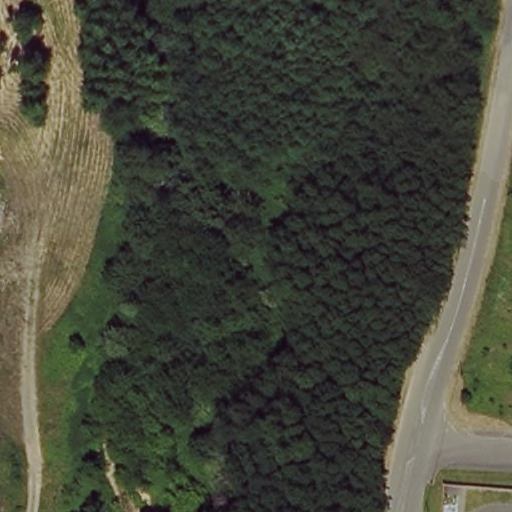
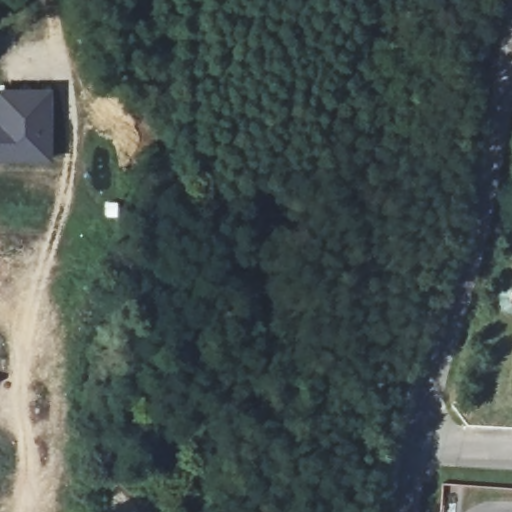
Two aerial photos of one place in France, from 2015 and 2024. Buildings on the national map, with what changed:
new [(49,165),(0,164),(0,89),(48,89),(49,165)]

